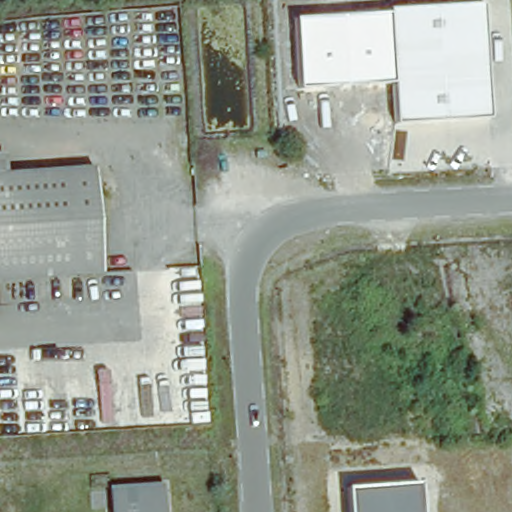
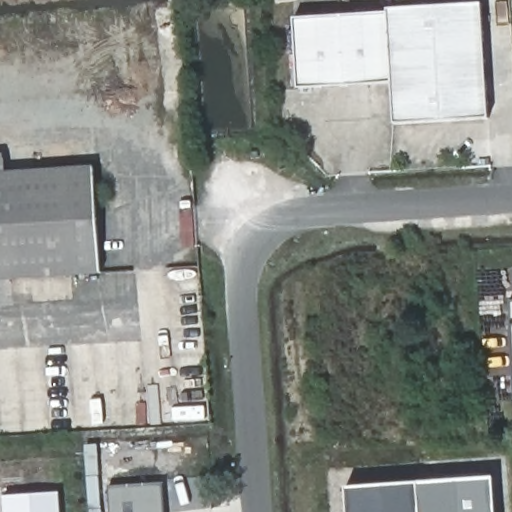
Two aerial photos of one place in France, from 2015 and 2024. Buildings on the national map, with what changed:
unchanged [(481,2),(490,116),(397,122),(394,82),(389,14),(389,8),(481,2)]
unchanged [(389,14),(394,82),(299,89),(295,17),(389,14)]
unchanged [(0,148),(6,148),(5,167),(95,164),(97,268),(0,277),(0,148)]
new [(508,323),(511,323),(510,301),(512,301),(512,401),(508,323)]
new [(494,512),(422,512),(420,485),(492,480),(494,512)]
unchanged [(422,512),(350,512),(349,489),(420,485),(422,512)]
unchanged [(164,512),(112,512),(110,488),(163,486),(164,512)]
new [(5,512),(4,496),(56,492),(58,512),(5,512)]

